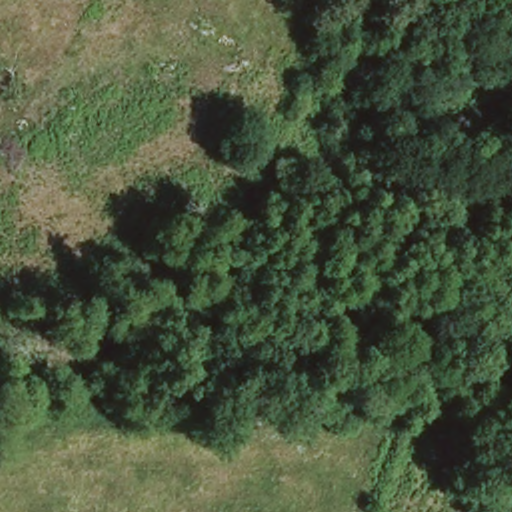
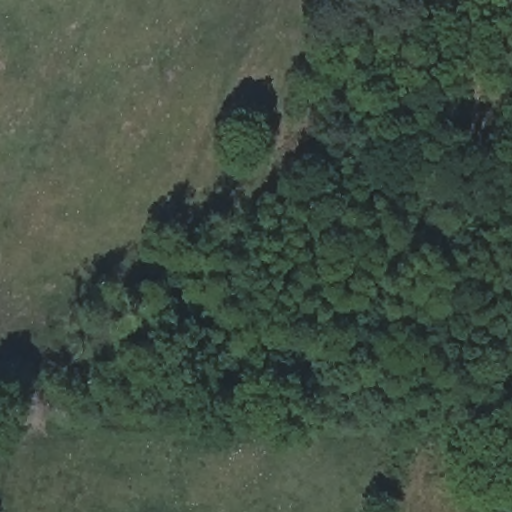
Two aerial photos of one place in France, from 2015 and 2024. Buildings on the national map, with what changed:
[]

